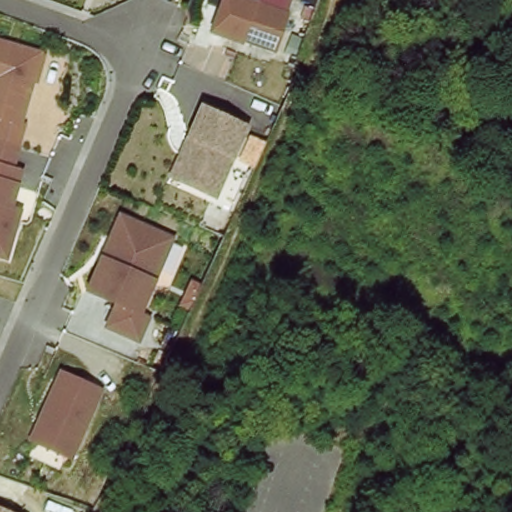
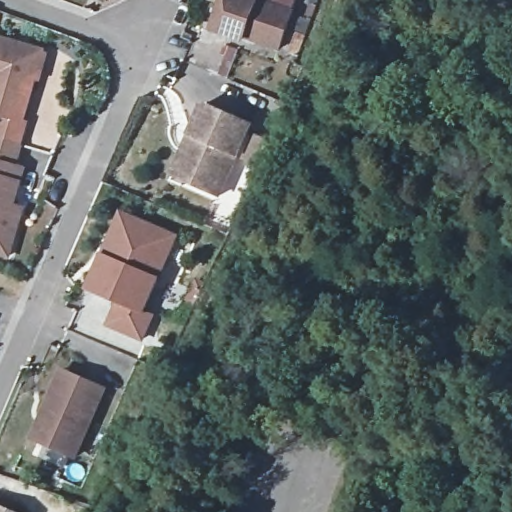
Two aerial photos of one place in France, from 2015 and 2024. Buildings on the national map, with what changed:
unchanged [(275,51),(242,39),(241,43),(211,32),(221,0),(246,0),(288,15),(275,51)]
unchanged [(19,124),(0,119),(0,42),(40,53),(19,124)]
unchanged [(187,138),(201,107),(246,127),(214,198),(180,183),(169,178),(187,138)]
unchanged [(0,257),(0,142),(21,148),(15,169),(24,172),(13,208),(22,211),(19,222),(8,259),(0,257)]
unchanged [(142,315),(151,319),(140,342),(108,328),(118,305),(89,292),(104,259),(122,217),(133,221),(175,240),(142,315)]
unchanged [(72,460),(30,442),(58,381),(61,374),(82,383),(103,392),(72,460)]
unchanged [(0,512),(0,510),(6,512),(0,512)]

